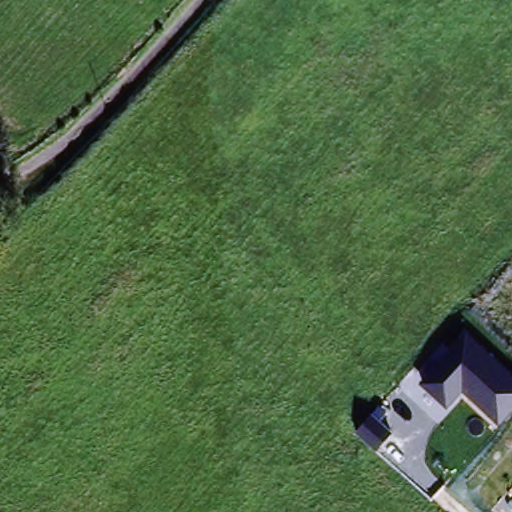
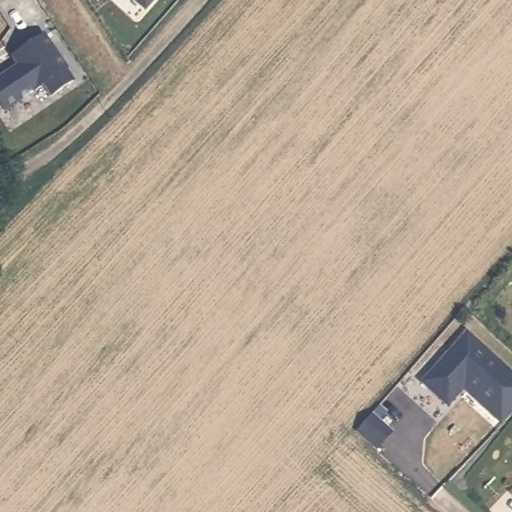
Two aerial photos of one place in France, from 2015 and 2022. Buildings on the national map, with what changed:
new [(145,12),(131,0),(156,0),(145,12)]
new [(45,86),(5,112),(0,106),(0,77),(15,66),(10,59),(45,35),(75,82),(54,97),(45,86)]
unchanged [(468,330),(512,372),(512,410),(500,423),(463,392),(447,408),(420,381),(468,330)]

